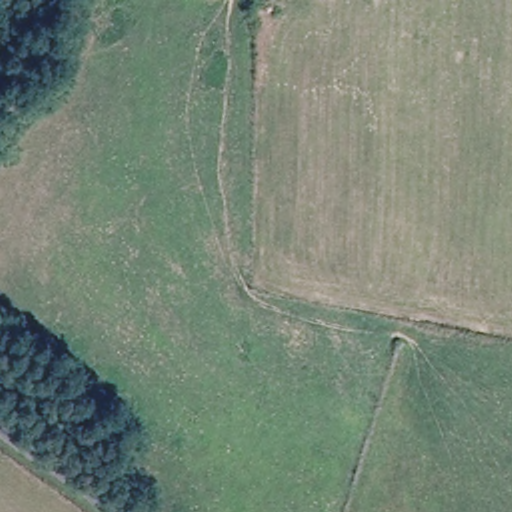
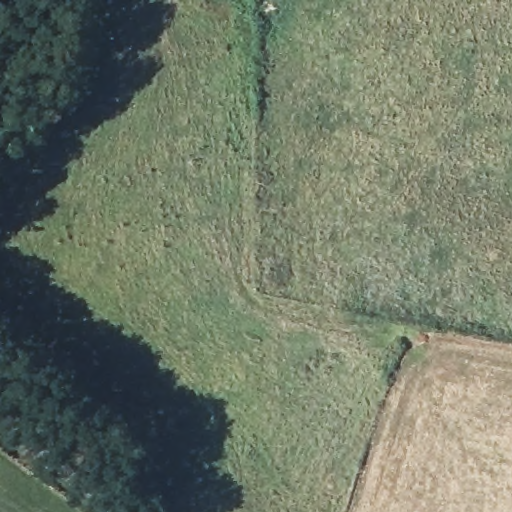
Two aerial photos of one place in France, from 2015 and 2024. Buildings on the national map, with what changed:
[]

